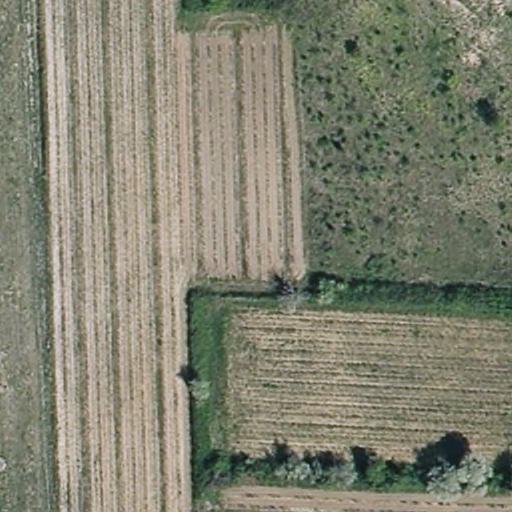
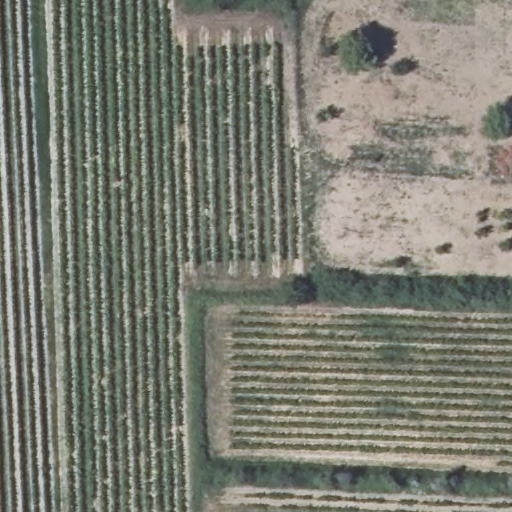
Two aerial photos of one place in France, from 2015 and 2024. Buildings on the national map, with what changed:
[]

